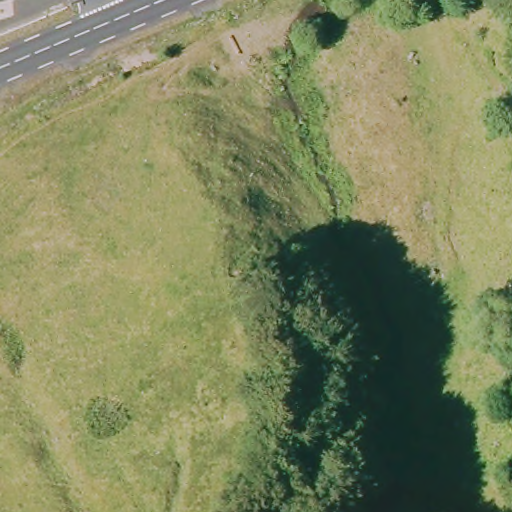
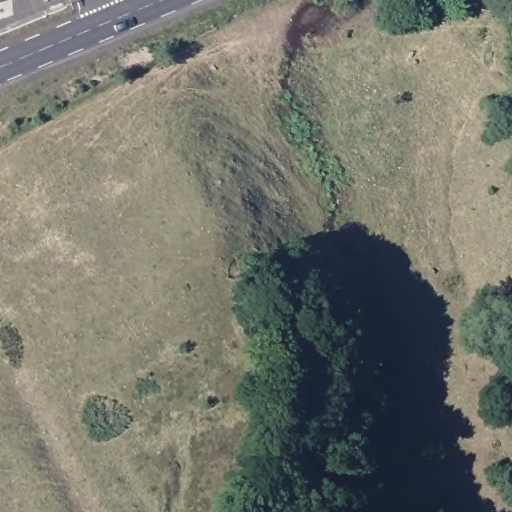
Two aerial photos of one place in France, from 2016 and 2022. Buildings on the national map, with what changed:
unchanged [(0,6),(0,0),(11,0),(0,6)]

